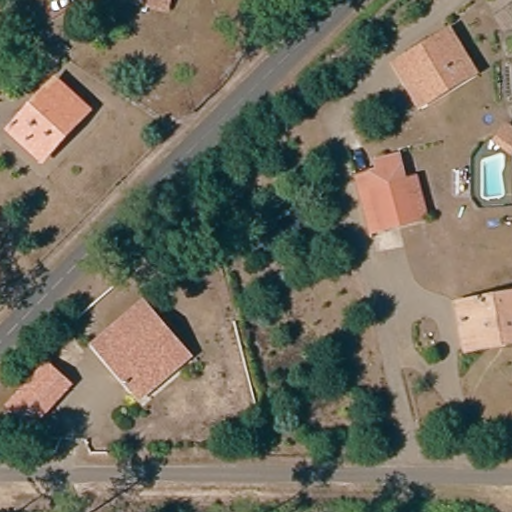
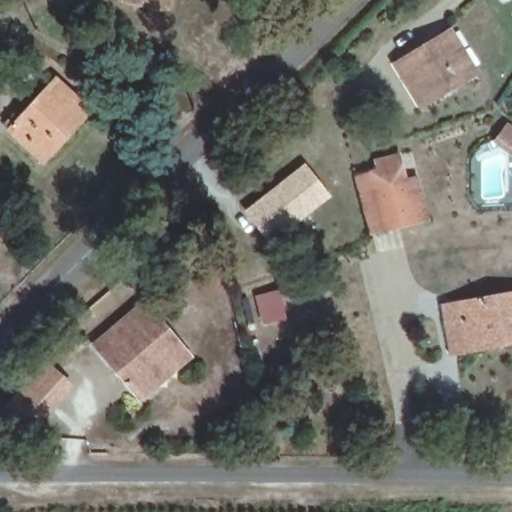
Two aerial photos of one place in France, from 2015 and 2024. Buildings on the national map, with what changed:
unchanged [(168,12),(126,1),(127,0),(171,0),(168,12)]
unchanged [(411,76),(403,64),(456,29),(479,68),(463,79),(427,103),(411,76)]
unchanged [(19,133),(13,126),(20,118),(27,112),(33,118),(66,83),(96,113),(49,162),(19,133)]
unchanged [(512,136),(512,147),(507,142),(512,136)]
unchanged [(433,223),(433,225),(419,229),(396,236),(382,179),(379,168),(403,161),(409,188),(413,187),(423,184),(428,201),(433,223)]
new [(332,196),(268,242),(242,212),(304,162),(332,196)]
unchanged [(396,236),(380,240),(374,241),(360,185),(367,183),(382,179),(396,236)]
unchanged [(512,338),(470,347),(469,337),(464,306),(512,297),(512,338)]
unchanged [(130,391),(96,348),(148,304),(170,332),(179,343),(182,347),(130,391)]
unchanged [(53,361),(74,383),(33,423),(12,400),(53,361)]

